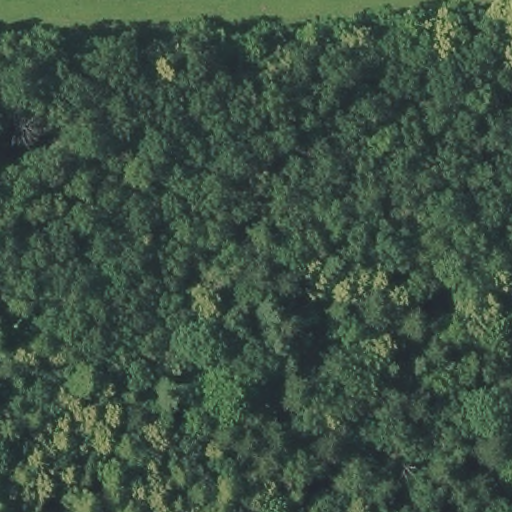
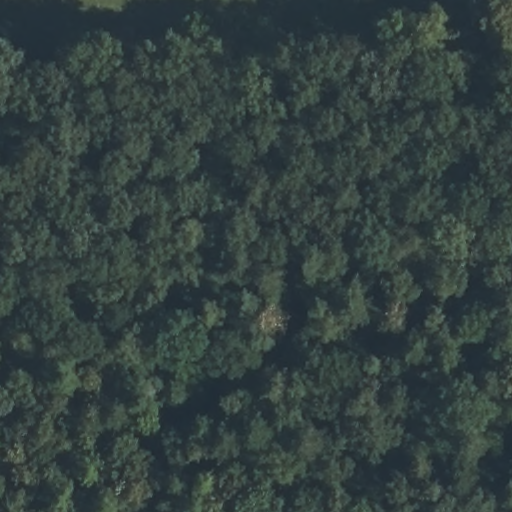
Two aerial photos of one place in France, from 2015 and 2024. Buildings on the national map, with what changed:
[]

